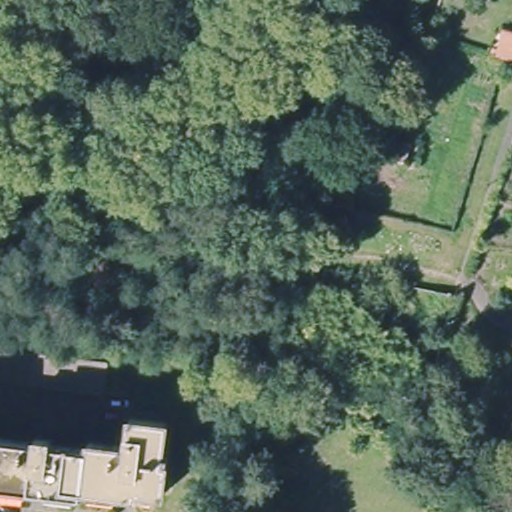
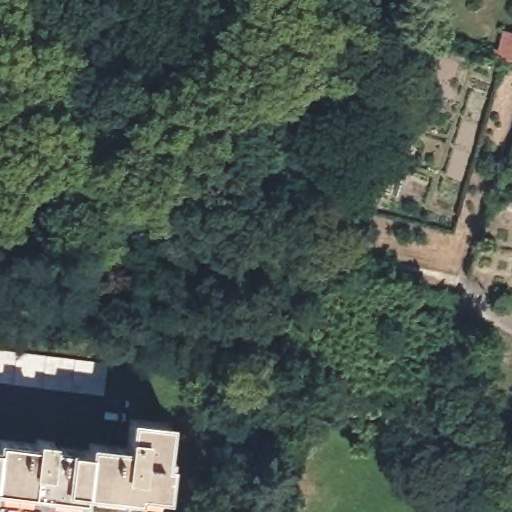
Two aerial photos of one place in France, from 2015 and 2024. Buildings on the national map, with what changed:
unchanged [(0,381),(0,351),(106,366),(102,396),(0,381)]
unchanged [(80,488),(78,495),(0,484),(0,438),(31,443),(32,437),(52,440),(51,444),(86,450),(87,441),(125,446),(129,418),(166,423),(162,461),(167,462),(163,493),(135,489),(134,495),(80,488)]
unchanged [(456,487),(472,487),(473,512),(458,512),(456,487)]

